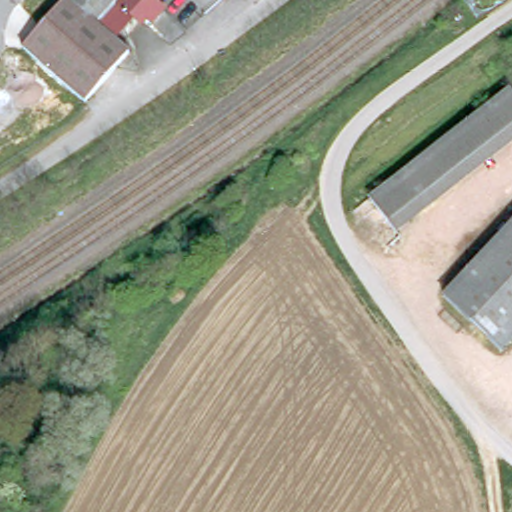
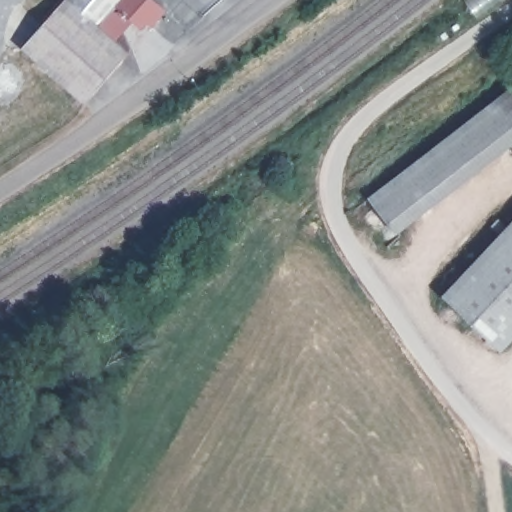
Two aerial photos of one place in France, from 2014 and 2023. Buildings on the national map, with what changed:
unchanged [(30,50),(30,49),(72,2),(73,1),(73,0),(124,0),(142,16),(120,41),(135,55),(132,59),(92,105),(32,52),(30,50)]
unchanged [(158,29),(142,16),(124,0),(153,0),(170,15),(158,29)]
unchanged [(372,197),(512,90),(512,145),(401,233),(372,197)]
unchanged [(442,288),(512,216),(512,328),(498,342),(442,288)]

